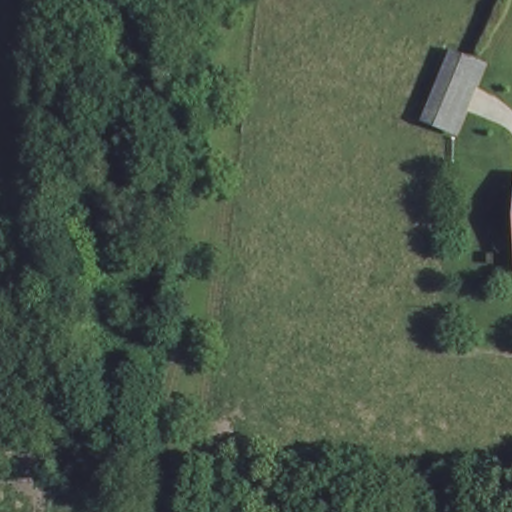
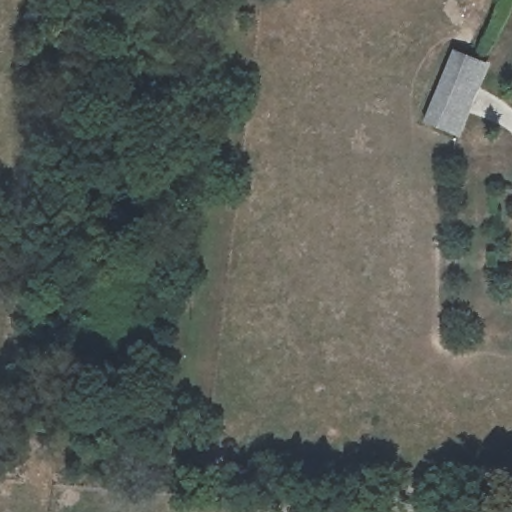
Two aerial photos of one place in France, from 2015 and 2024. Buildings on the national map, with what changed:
unchanged [(425,123),(451,49),(490,64),(458,135),(425,123)]

